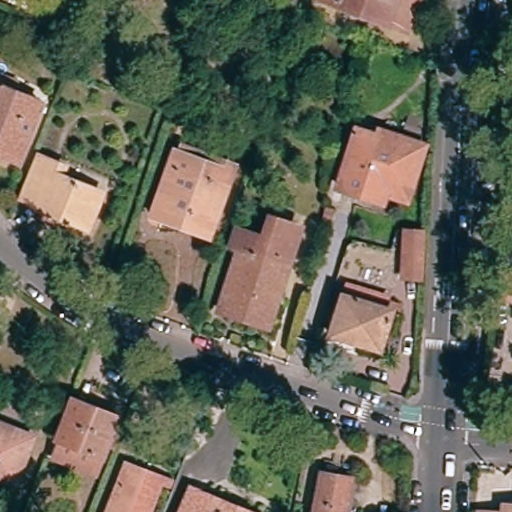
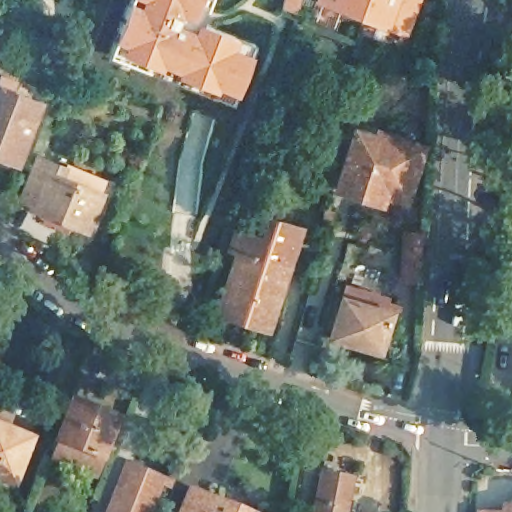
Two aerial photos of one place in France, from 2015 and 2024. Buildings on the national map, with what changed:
new [(131,0),(209,0),(200,23),(239,37),(255,45),(252,54),(234,96),(230,102),(214,97),(110,55),(131,0)]
unchanged [(282,11),(284,0),(292,0),(289,13),(282,11)]
unchanged [(406,32),(320,1),(320,0),(418,0),(406,32)]
unchanged [(0,80),(0,79),(14,84),(10,94),(40,105),(18,165),(0,159),(0,80)]
unchanged [(356,134),(378,141),(379,136),(423,149),(406,203),(384,196),(382,204),(338,191),(356,134)]
unchanged [(48,164),(45,172),(101,195),(86,231),(68,224),(71,214),(50,206),(46,215),(30,209),(31,206),(16,200),(34,158),(48,164)]
demolished [(172,160),(191,167),(193,162),(229,174),(204,246),(178,236),(181,227),(151,216),(151,215),(172,160)]
unchanged [(331,225),(323,223),(327,212),(334,214),(331,225)]
unchanged [(228,308),(244,258),(234,255),(239,238),(267,246),(274,226),(304,236),(273,333),(250,326),(254,316),(228,308)]
unchanged [(414,271),(398,270),(399,226),(417,226),(414,271)]
unchanged [(493,273),(512,274),(509,293),(489,291),(493,273)]
unchanged [(332,306),(375,318),(377,310),(389,313),(382,341),(391,343),(386,361),(322,343),(332,306)]
unchanged [(56,443),(73,404),(116,422),(100,461),(56,443)]
unchanged [(14,486),(0,481),(0,426),(10,429),(9,433),(31,441),(14,486)]
unchanged [(147,512),(110,512),(126,470),(143,477),(140,482),(156,488),(147,512)]
unchanged [(344,483),(338,512),(310,512),(317,477),(344,483)]
unchanged [(238,512),(188,512),(195,494),(238,512)]

